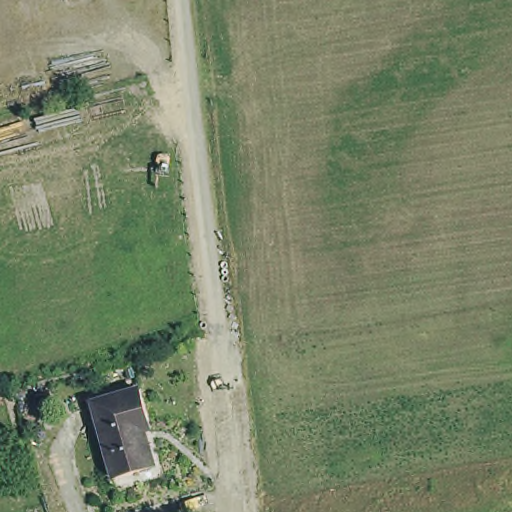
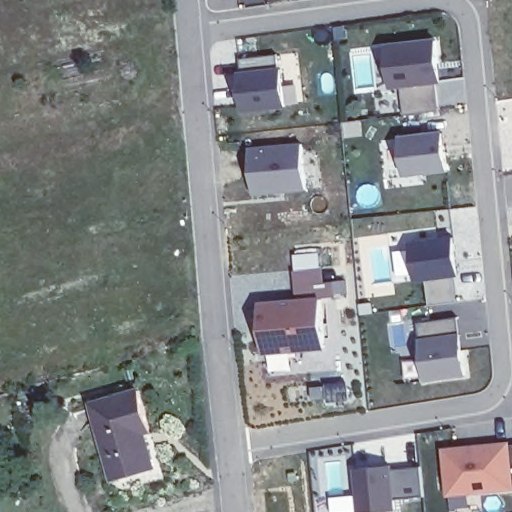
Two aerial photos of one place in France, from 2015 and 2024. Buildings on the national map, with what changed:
new [(432,38),(439,111),(399,115),(397,89),(382,90),(379,43),(432,38)]
new [(241,57),(279,54),(280,67),(289,66),(293,107),(248,111),(241,57)]
new [(440,172),(396,177),(390,136),(435,131),(440,172)]
new [(311,189),(258,193),(254,146),(308,142),(311,189)]
new [(453,276),(449,276),(452,303),(425,306),(423,281),(408,282),(404,241),(450,237),(453,276)]
new [(269,353),(265,300),(299,297),(296,252),(319,251),(320,281),(331,281),(332,296),(314,297),(318,349),(269,353)]
new [(462,379),(418,384),(412,339),(415,338),(413,322),(454,318),(462,379)]
unchanged [(113,478),(91,403),(138,389),(149,428),(143,430),(153,466),(113,478)]
new [(512,446),(512,491),(511,491),(443,497),(438,448),(506,442),(507,446),(512,446)]
new [(388,470),(417,468),(419,496),(391,498),(392,512),(353,512),(351,469),(388,467),(388,470)]

